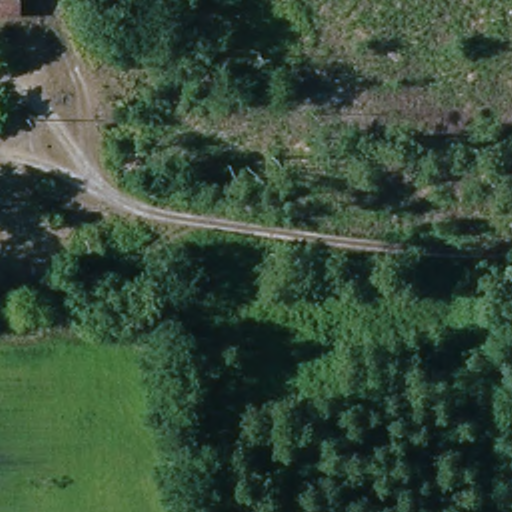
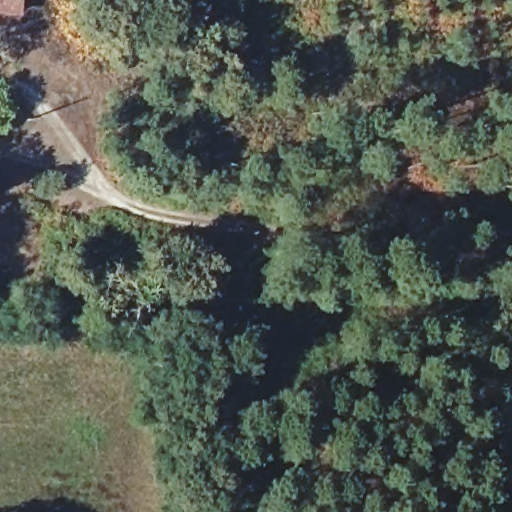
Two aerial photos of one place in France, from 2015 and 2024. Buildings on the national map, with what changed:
unchanged [(0,17),(0,0),(11,0),(11,17),(0,17)]

